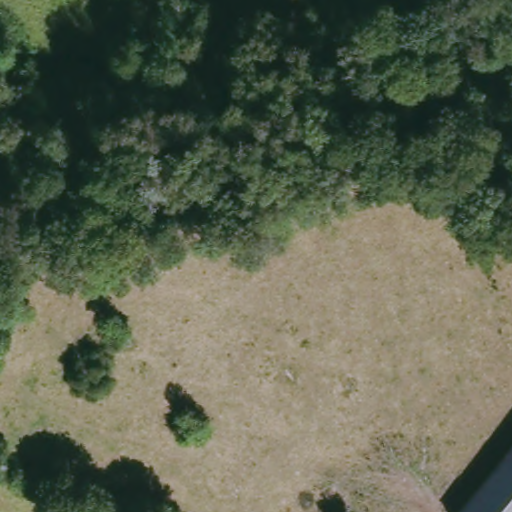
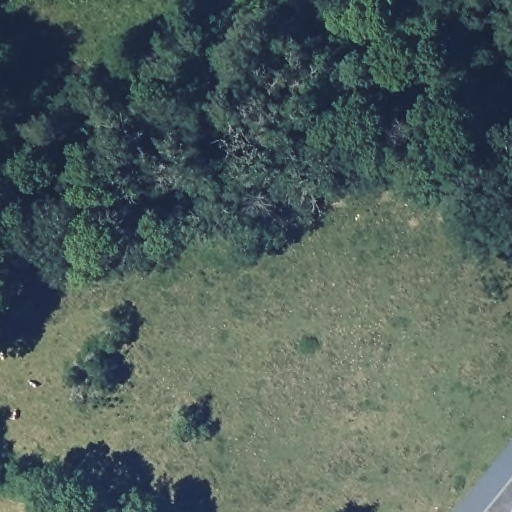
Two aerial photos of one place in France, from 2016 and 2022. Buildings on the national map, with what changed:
unchanged [(512,454),(512,512),(468,512),(512,454)]

